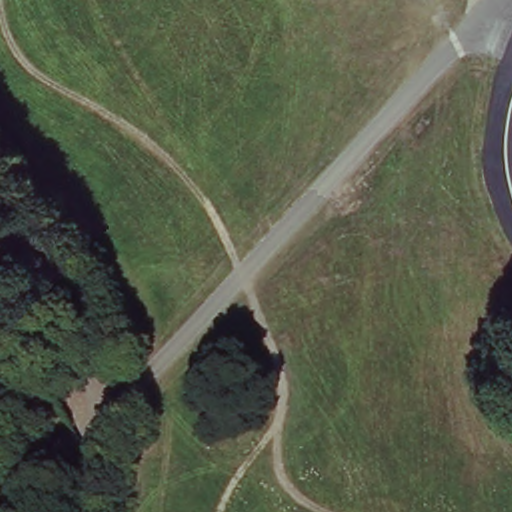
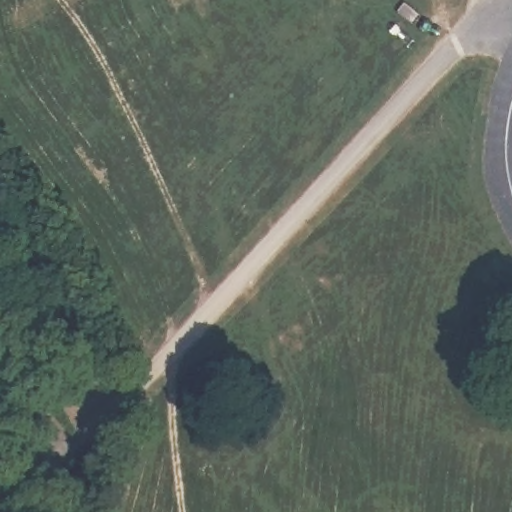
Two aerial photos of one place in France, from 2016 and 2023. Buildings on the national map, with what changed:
[]

